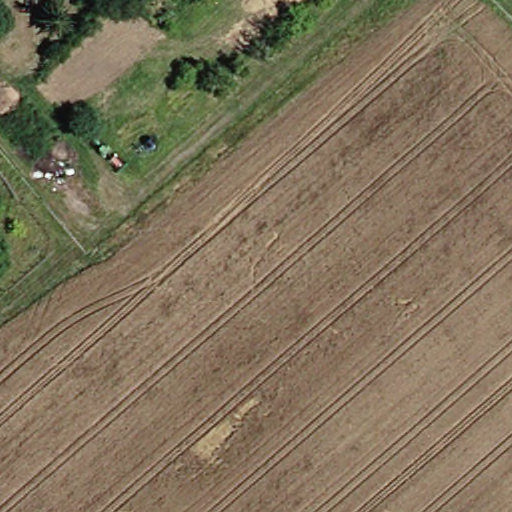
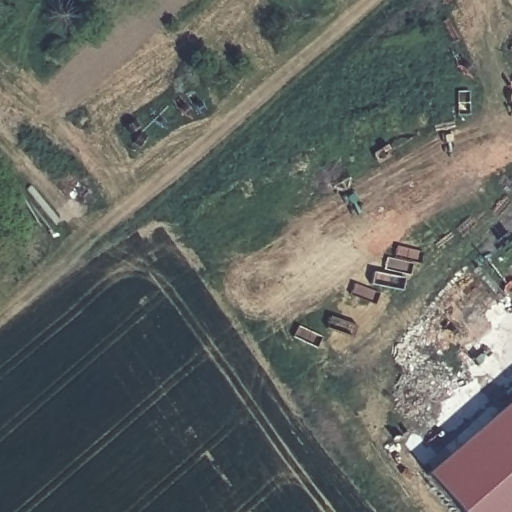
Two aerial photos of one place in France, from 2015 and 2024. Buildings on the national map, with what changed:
new [(428,475),(512,401),(512,512),(460,512),(428,475)]

